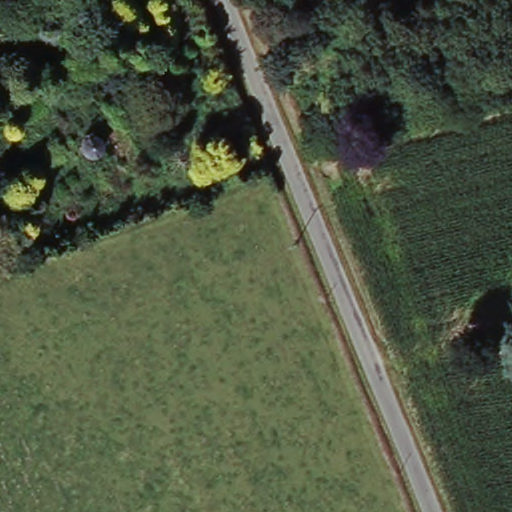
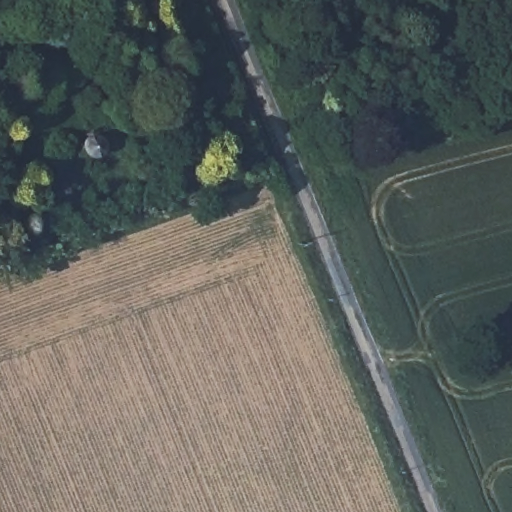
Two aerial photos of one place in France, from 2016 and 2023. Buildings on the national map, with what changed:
unchanged [(103,142),(103,143),(103,144),(102,144),(102,145),(102,146),(101,146),(101,147),(100,147),(100,148),(99,149),(98,149),(98,150),(97,150),(96,150),(96,151),(95,151),(94,151),(92,151),(91,151),(90,151),(90,150),(89,150),(88,149),(87,149),(87,148),(86,148),(86,147),(85,147),(85,146),(84,146),(84,145),(83,145),(83,144),(83,143),(83,142),(82,142),(82,141),(82,139),(82,138),(83,138),(83,137),(83,136),(83,135),(84,135),(84,134),(85,134),(85,133),(85,132),(86,132),(87,132),(87,131),(88,131),(89,131),(90,131),(90,130),(91,130),(92,130),(93,130),(94,130),(95,130),(96,130),(96,131),(97,131),(98,131),(98,132),(99,132),(100,132),(100,133),(101,133),(101,134),(101,135),(102,135),(102,136),(102,137),(103,137),(103,138),(103,139),(103,140),(103,141),(103,142)]

